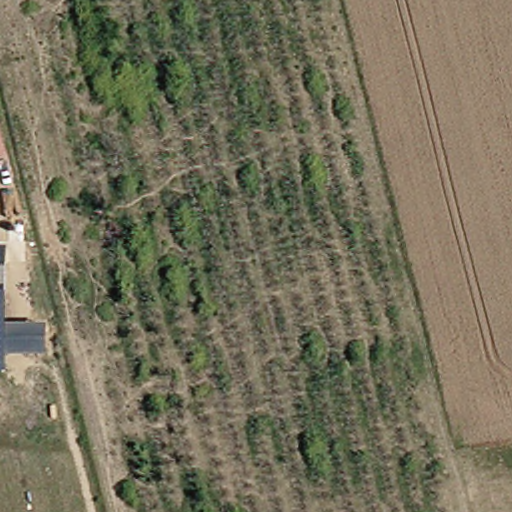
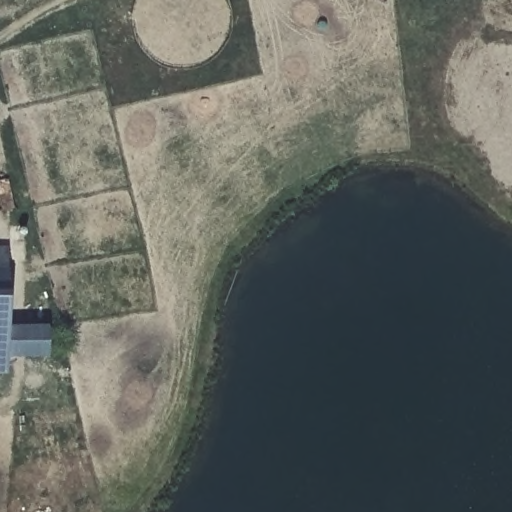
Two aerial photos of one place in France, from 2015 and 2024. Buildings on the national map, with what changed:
unchanged [(7,366),(0,366),(0,263),(8,263),(7,366)]

